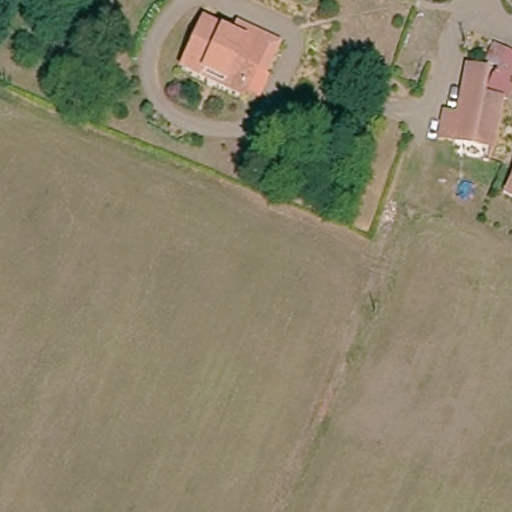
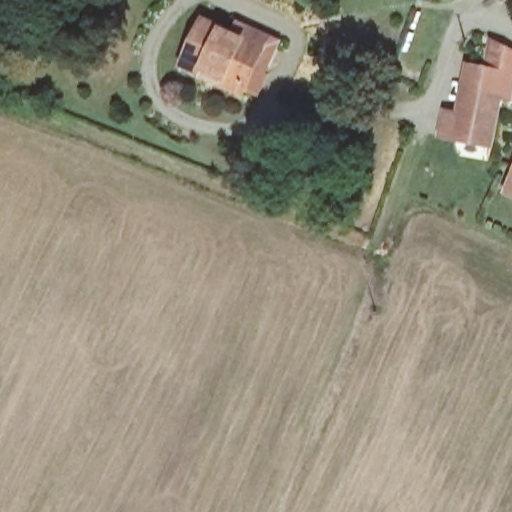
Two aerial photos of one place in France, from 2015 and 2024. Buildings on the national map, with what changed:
unchanged [(209,81),(187,71),(205,28),(232,38),(238,24),(278,41),(265,72),(256,69),(247,88),(245,96),(209,81)]
unchanged [(498,68),(485,60),(492,43),(512,53),(512,68),(507,77),(512,80),(512,94),(510,98),(489,86),(498,68)]
unchanged [(436,131),(442,107),(459,111),(471,64),(490,68),(482,93),(500,97),(488,145),(436,131)]

